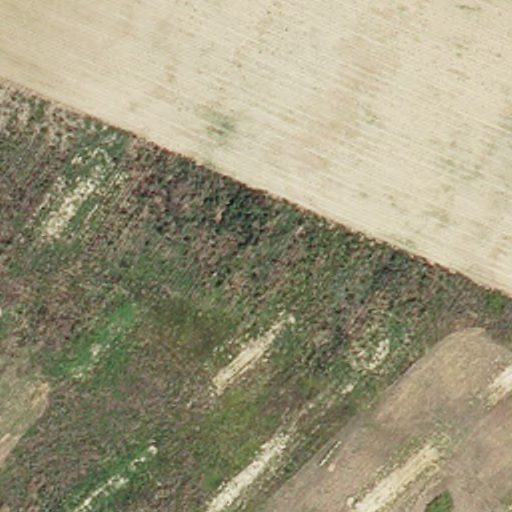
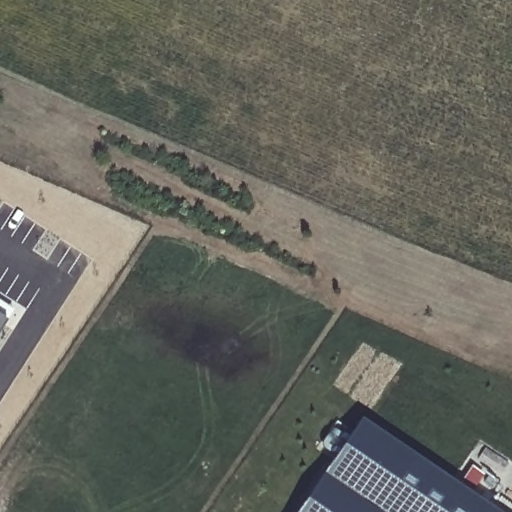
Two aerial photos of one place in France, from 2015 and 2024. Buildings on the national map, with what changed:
new [(0,330),(0,321),(4,324),(0,330)]
new [(495,512),(302,512),(362,423),(495,512)]

